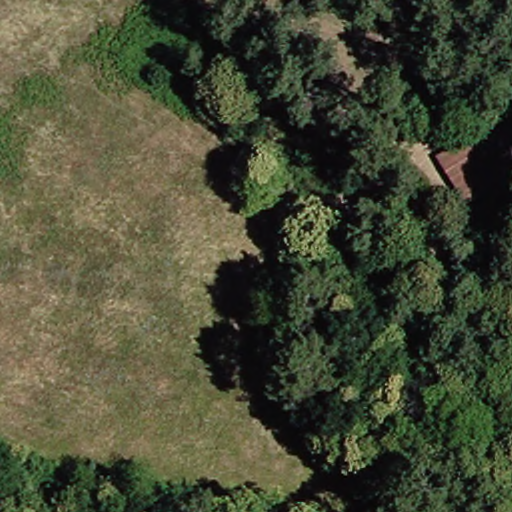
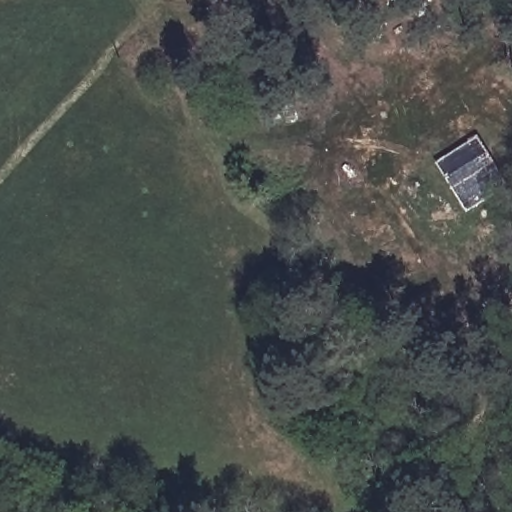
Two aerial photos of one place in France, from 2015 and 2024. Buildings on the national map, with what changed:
unchanged [(482,139),(509,190),(482,203),(473,187),(457,196),(438,163),(482,139)]

